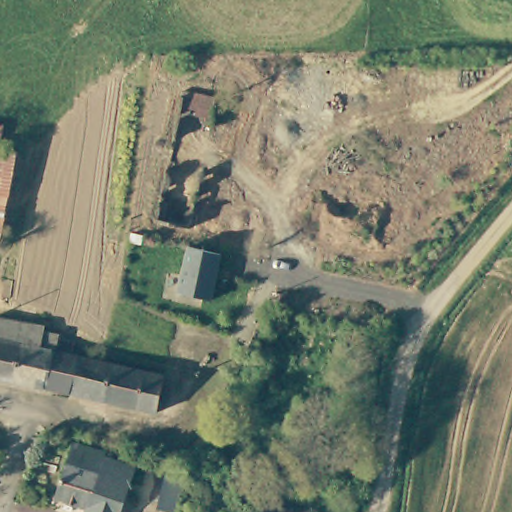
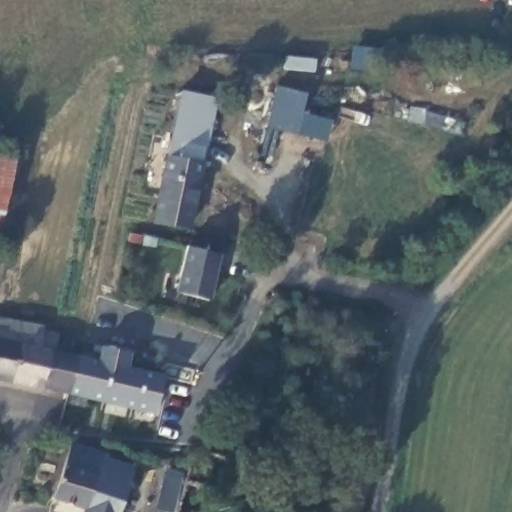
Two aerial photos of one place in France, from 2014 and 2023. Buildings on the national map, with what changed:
new [(302,114),(333,121),(328,142),(265,127),(275,86),(306,94),(302,114)]
new [(205,166),(192,230),(154,222),(180,91),(216,99),(205,166)]
unchanged [(0,230),(0,158),(10,160),(0,230)]
unchanged [(207,308),(172,301),(183,255),(217,262),(207,308)]
unchanged [(35,352),(160,378),(152,417),(0,386),(0,322),(40,330),(35,352)]
unchanged [(102,457),(100,462),(132,472),(120,512),(82,512),(50,500),(69,446),(102,457)]

